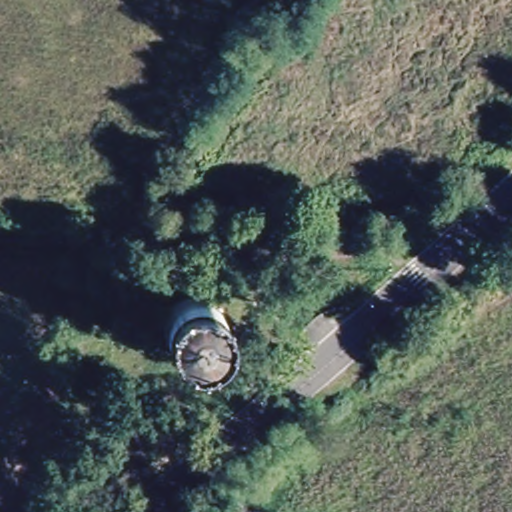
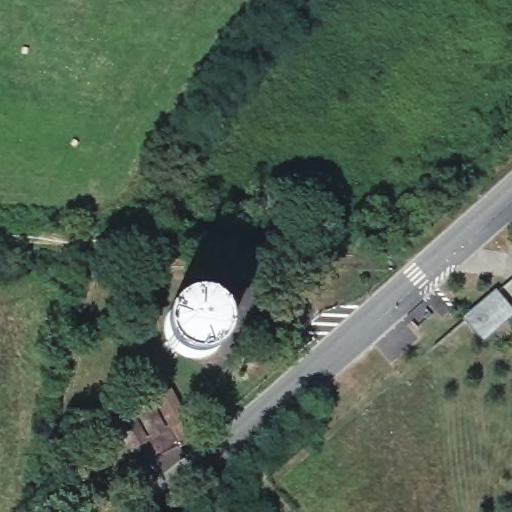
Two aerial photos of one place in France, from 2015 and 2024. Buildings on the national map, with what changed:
new [(465,320),(497,292),(512,310),(512,316),(482,340),(465,320)]
unchanged [(149,402),(164,394),(178,420),(163,428),(149,402)]
unchanged [(156,435),(145,441),(131,415),(143,409),(156,435)]
unchanged [(108,426),(124,418),(137,445),(122,453),(108,426)]

